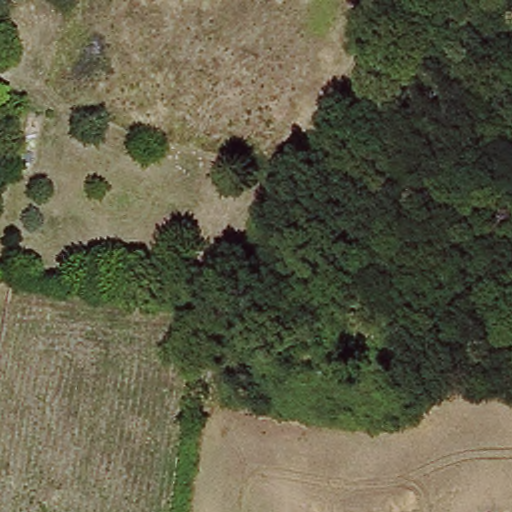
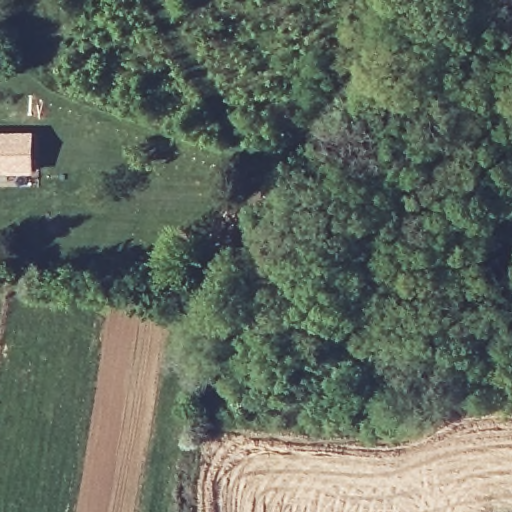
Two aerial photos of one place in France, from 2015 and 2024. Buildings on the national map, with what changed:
new [(32,130),(33,173),(0,173),(0,130),(32,130)]

